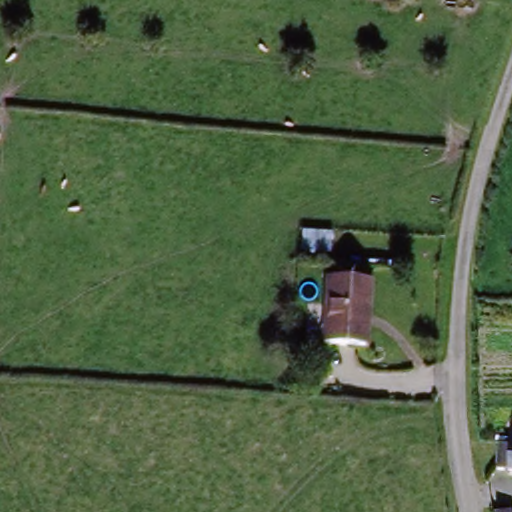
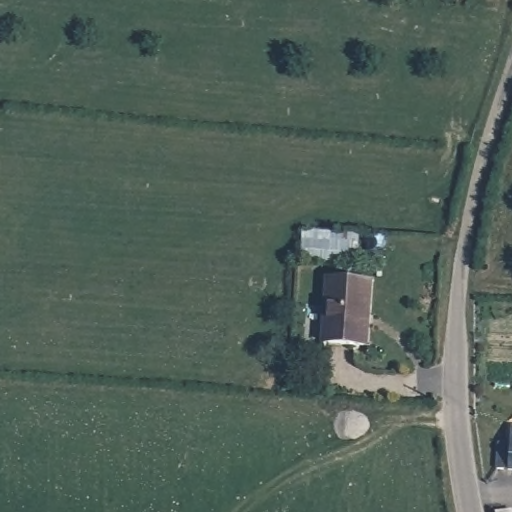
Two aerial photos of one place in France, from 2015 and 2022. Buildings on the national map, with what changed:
unchanged [(364,347),(322,343),(328,282),(370,286),(364,347)]
unchanged [(507,447),(507,434),(512,434),(512,472),(505,472),(507,447)]
unchanged [(506,510),(506,512),(498,512),(506,510)]

